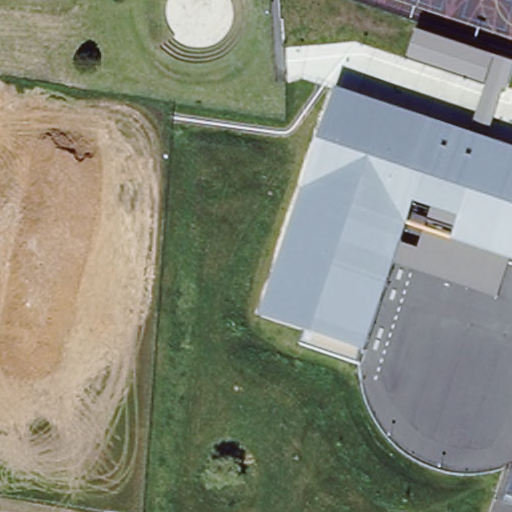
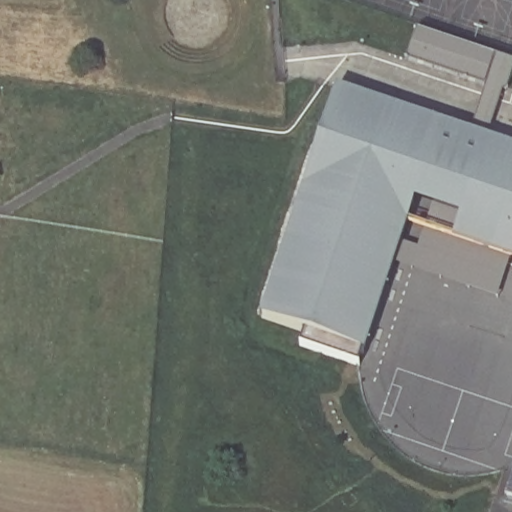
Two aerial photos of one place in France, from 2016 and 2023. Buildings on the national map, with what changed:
unchanged [(496,300),(393,265),(367,350),(362,349),(357,362),(301,345),(305,330),(259,316),(338,88),(469,132),(484,87),(407,60),(418,30),(512,62),(512,73),(489,140),(512,148),(512,262),(508,260),(496,300)]
unchanged [(512,479),(512,497),(507,495),(512,479)]

